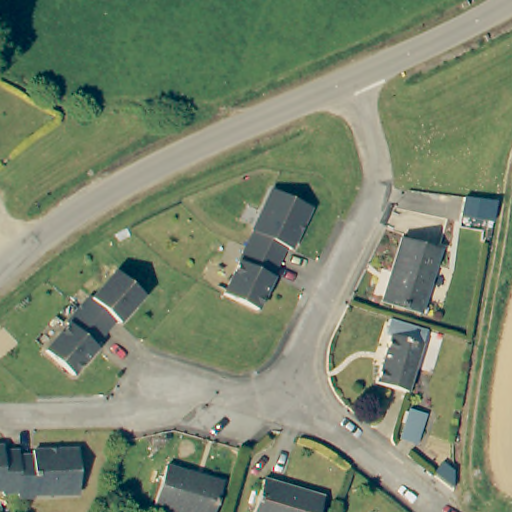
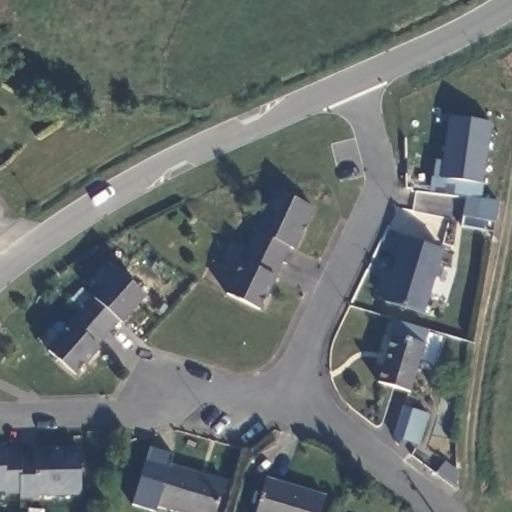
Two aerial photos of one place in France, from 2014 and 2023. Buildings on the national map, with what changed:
new [(485,185),(440,180),(447,117),(492,124),(485,185)]
unchanged [(320,206),(300,246),(293,245),(258,313),(235,304),(222,298),(257,234),(254,231),(275,189),(320,206)]
unchanged [(443,251),(421,312),(385,303),(402,240),(443,251)]
unchanged [(148,296),(124,322),(120,319),(99,342),(102,347),(76,373),(49,348),(72,323),(70,317),(90,295),(96,297),(120,272),(148,296)]
unchanged [(426,345),(411,394),(380,385),(396,337),(426,345)]
unchanged [(426,408),(416,440),(400,434),(410,402),(426,408)]
unchanged [(4,452),(16,452),(17,457),(35,457),(35,452),(80,450),(79,494),(39,495),(39,501),(20,501),(19,495),(4,496),(4,492),(0,493),(0,448),(3,447),(4,452)]
unchanged [(226,480),(215,512),(188,512),(156,501),(170,461),(226,480)]
unchanged [(325,495),(320,512),(261,512),(270,480),(325,495)]

